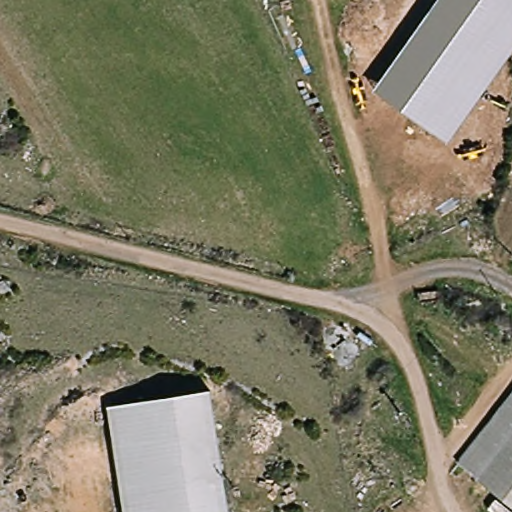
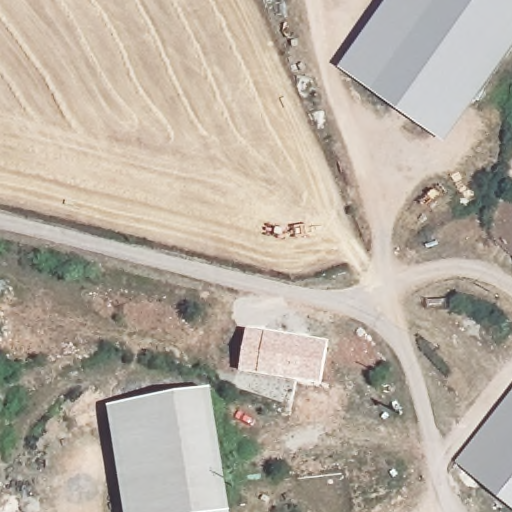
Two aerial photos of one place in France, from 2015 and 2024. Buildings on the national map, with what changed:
new [(342,69),(390,0),(439,0),(376,90),(342,69)]
unchanged [(376,90),(439,0),(512,0),(512,53),(447,142),(376,90)]
new [(321,387),(241,373),(247,332),(328,345),(321,387)]
unchanged [(512,392),(512,508),(457,464),(512,392)]
unchanged [(224,397),(235,512),(133,512),(123,409),(224,397)]
demolished [(431,422),(434,431),(428,426),(431,422)]

